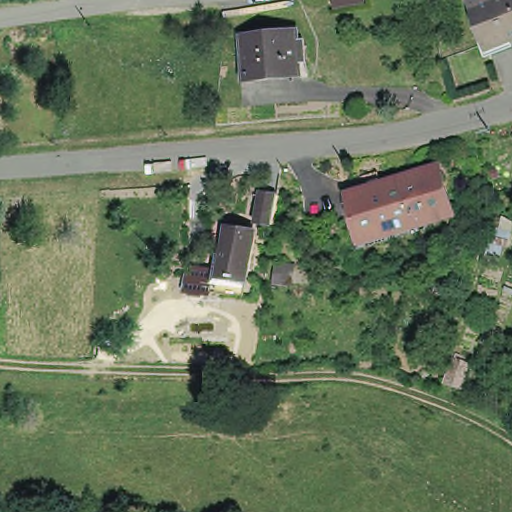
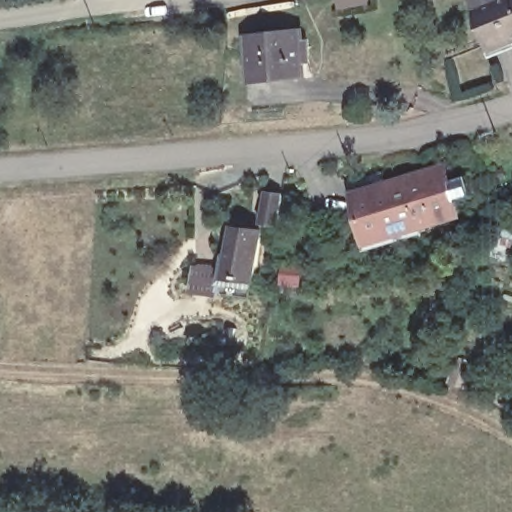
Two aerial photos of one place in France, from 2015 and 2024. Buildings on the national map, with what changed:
unchanged [(335,8),(333,0),(364,0),(365,2),(335,8)]
unchanged [(495,49),(480,12),(476,0),(512,0),(512,42),(495,49)]
unchanged [(257,76),(252,31),(306,25),(310,71),(257,76)]
unchanged [(463,205),(378,233),(364,187),(447,158),(463,205)]
unchanged [(262,193),(279,194),(275,224),(258,222),(262,193)]
unchanged [(214,269),(216,269),(222,269),(225,245),(227,221),(255,224),(250,273),(259,274),(256,290),(211,285),(214,269)]
unchanged [(286,265),(284,285),(274,284),(276,264),(286,265)]
unchanged [(471,350),(484,361),(467,381),(454,370),(471,350)]

